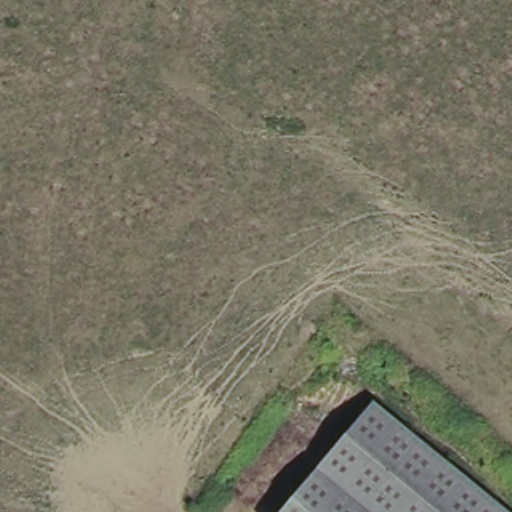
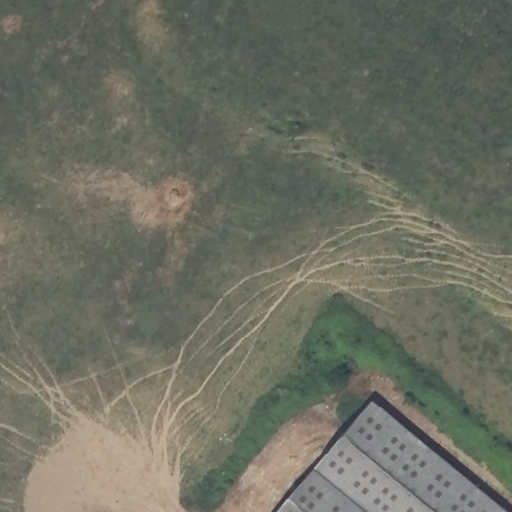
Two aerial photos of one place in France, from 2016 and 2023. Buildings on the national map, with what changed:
unchanged [(373,400),(511,512),(280,512),(373,400)]

